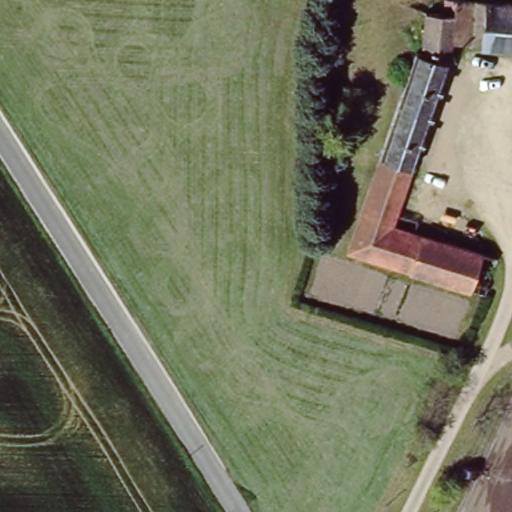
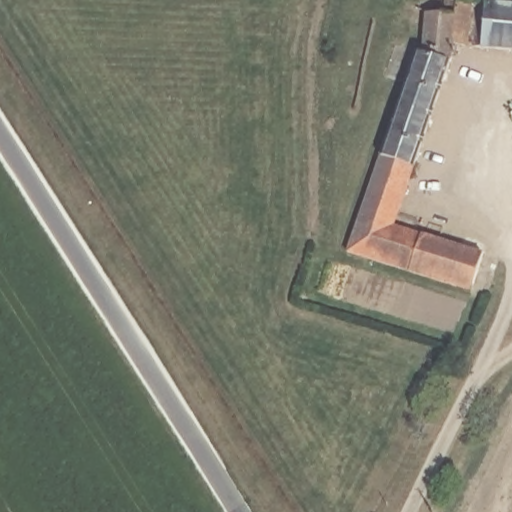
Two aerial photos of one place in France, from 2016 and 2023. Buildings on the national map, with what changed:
unchanged [(412,54),(420,54),(425,11),(445,14),(446,0),(512,4),(512,53),(454,48),(452,68),(394,226),(493,263),(480,299),(342,251),(410,60),(412,54)]

